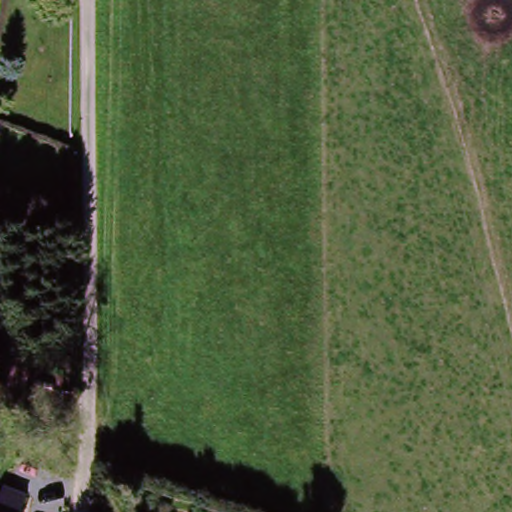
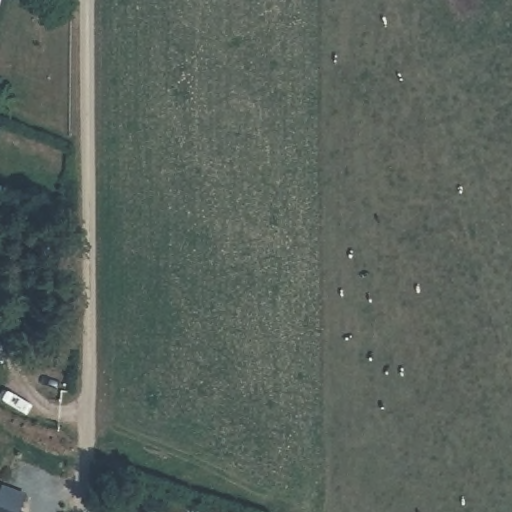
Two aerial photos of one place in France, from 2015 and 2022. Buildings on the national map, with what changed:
unchanged [(27,503),(24,512),(0,512),(0,505),(5,493),(27,503)]

